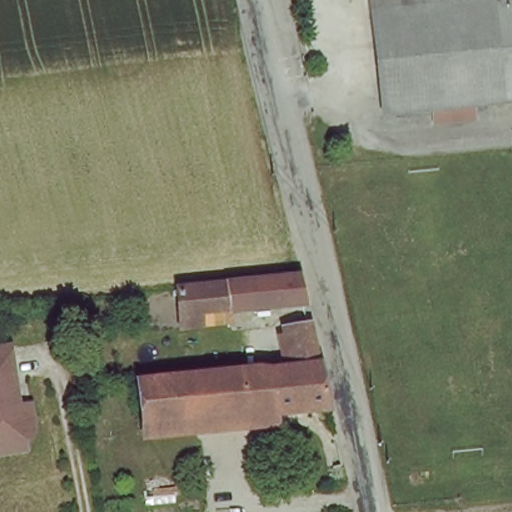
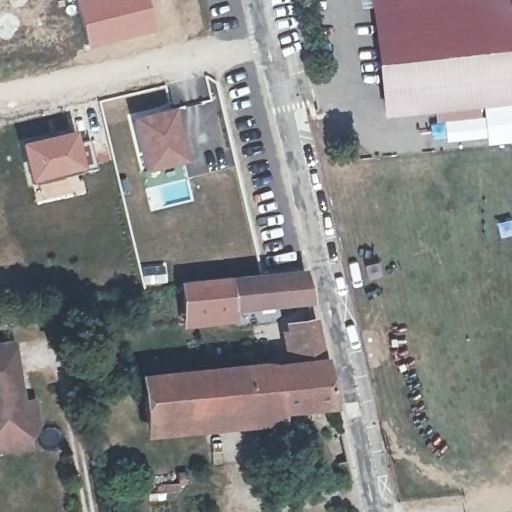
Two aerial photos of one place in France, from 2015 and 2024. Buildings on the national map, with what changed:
new [(87,49),(74,0),(149,0),(158,32),(87,49)]
unchanged [(380,0),(512,0),(512,97),(481,100),(482,112),(440,117),(439,104),(391,109),(390,104),(380,0)]
new [(173,104),(186,160),(141,171),(127,114),(173,104)]
new [(76,129),(85,168),(29,184),(18,141),(76,129)]
new [(167,260),(169,283),(142,287),(138,263),(167,260)]
unchanged [(180,288),(269,273),(297,268),(304,302),(275,307),(186,322),(180,288)]
unchanged [(333,408),(148,426),(141,369),(262,357),(284,355),(287,355),(286,345),(296,344),(295,325),(317,322),(333,408)]
unchanged [(0,447),(0,341),(11,339),(22,399),(34,397),(36,411),(38,421),(34,429),(27,430),(30,442),(0,447)]

